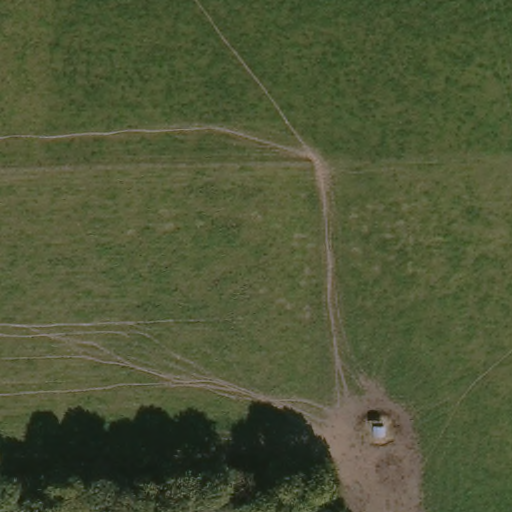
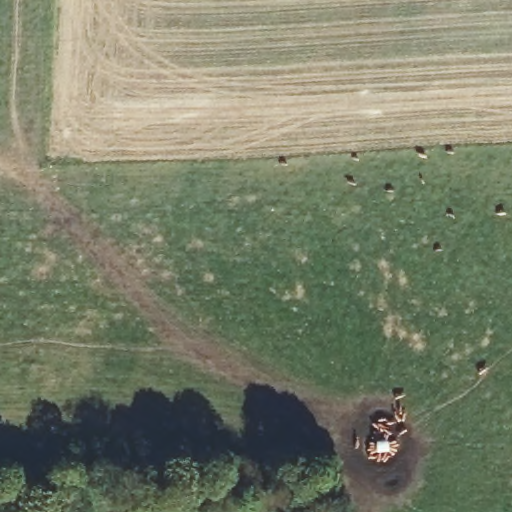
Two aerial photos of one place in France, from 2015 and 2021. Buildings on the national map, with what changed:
[]

